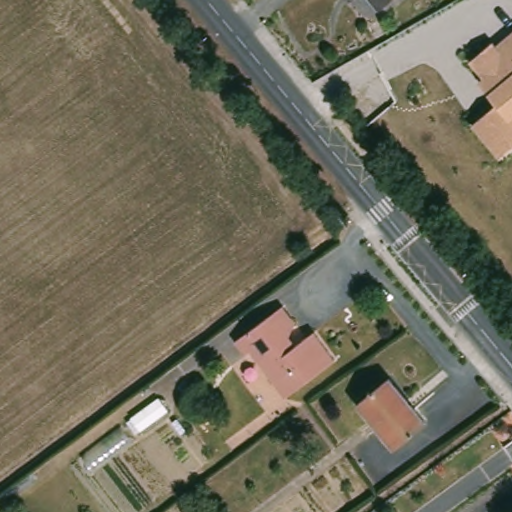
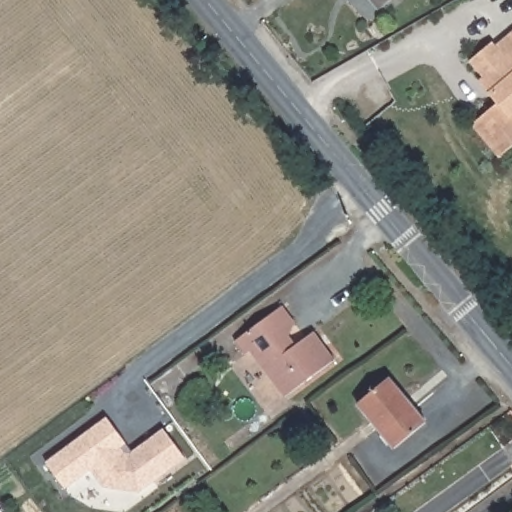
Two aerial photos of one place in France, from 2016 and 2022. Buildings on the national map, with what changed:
unchanged [(385,9),(377,0),(393,0),(385,9)]
unchanged [(492,41),(495,46),(512,32),(512,147),(499,158),(472,125),(500,104),(488,92),(478,81),(483,76),(469,60),(492,41)]
unchanged [(252,354),(246,357),(235,342),(282,308),(293,323),(288,340),(293,348),(314,333),(336,362),(287,397),(252,354)]
unchanged [(418,424),(391,447),(357,405),(385,381),(418,424)]
new [(133,451),(163,428),(186,458),(140,493),(104,486),(91,470),(66,490),(47,463),(107,416),(133,451)]

